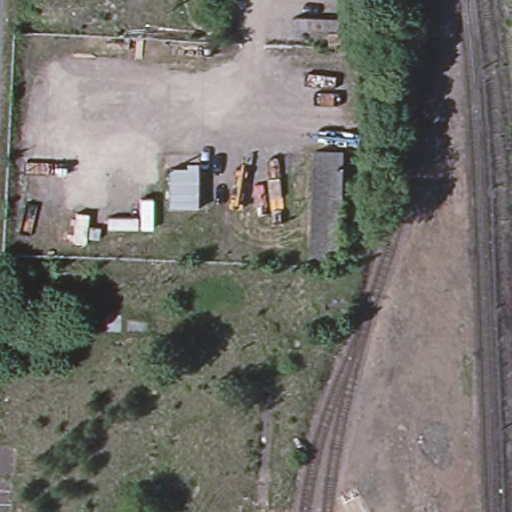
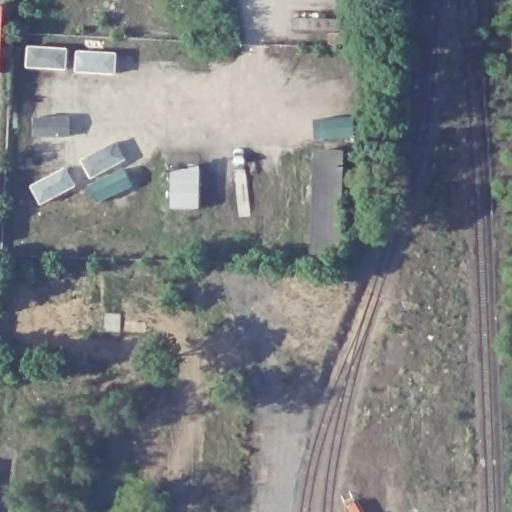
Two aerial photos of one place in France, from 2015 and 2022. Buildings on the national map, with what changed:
unchanged [(312,252),(314,180),(315,150),(342,151),(342,181),(340,252),(312,252)]
unchanged [(187,169),(188,162),(199,163),(199,210),(168,210),(167,170),(187,169)]

